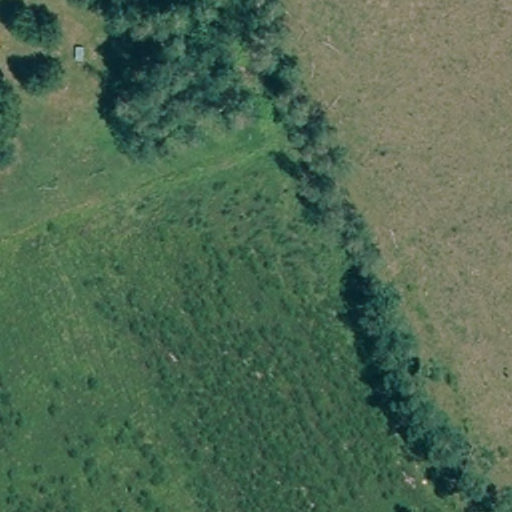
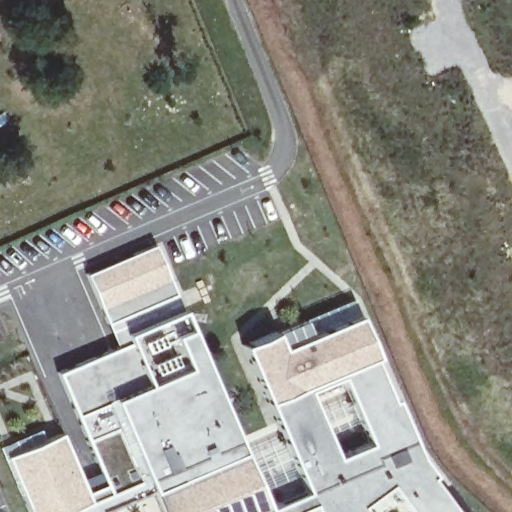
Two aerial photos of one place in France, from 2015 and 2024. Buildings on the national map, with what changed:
new [(161,240),(182,290),(114,320),(92,270),(161,240)]
new [(114,320),(174,294),(184,310),(269,508),(308,491),(246,347),(277,335),(303,326),(307,340),(359,317),(375,355),(373,358),(390,400),(395,398),(417,455),(432,475),(428,478),(456,512),(411,512),(390,483),(359,506),(364,512),(164,512),(155,491),(105,512),(32,512),(8,459),(64,435),(88,494),(107,486),(60,373),(125,347),(114,320)]
new [(460,511),(460,512),(458,512),(460,511)]

